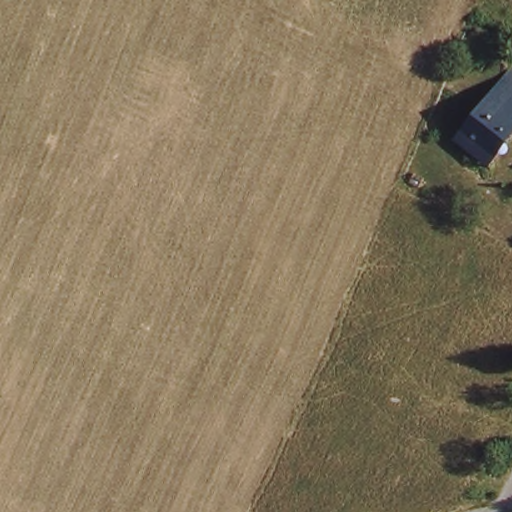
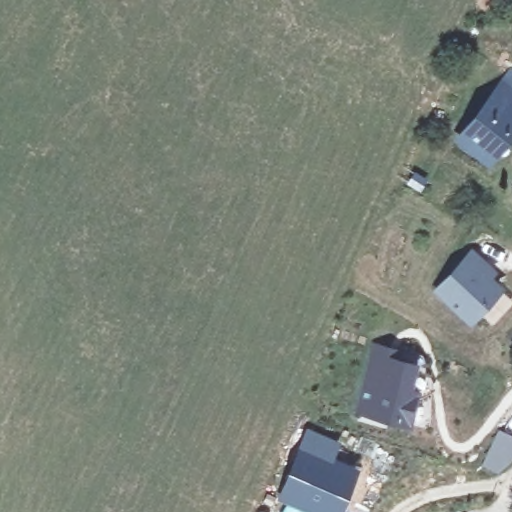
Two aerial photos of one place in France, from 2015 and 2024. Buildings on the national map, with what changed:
unchanged [(496,89),(506,76),(512,81),(512,127),(490,155),(462,134),(496,89)]
new [(479,282),(490,291),(460,324),(428,294),(462,256),(484,276),(479,282)]
new [(405,369),(398,394),(406,397),(399,427),(351,415),(365,359),(405,369)]
new [(509,463),(496,476),(480,468),(498,432),(512,439),(512,457),(509,463)]
new [(299,465),(292,462),(297,449),(305,452),(312,436),(334,445),(328,462),(350,471),(333,512),(322,512),(286,498),(299,465)]

